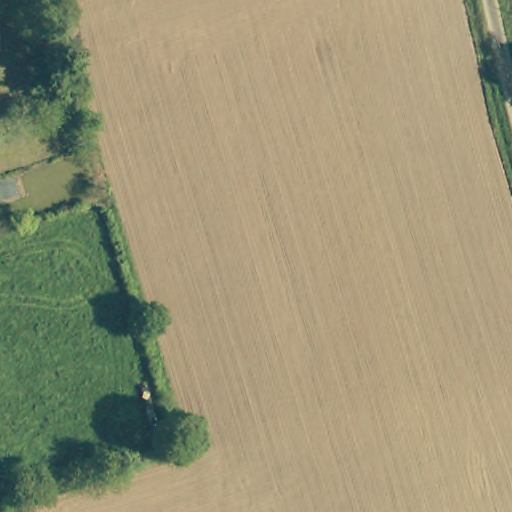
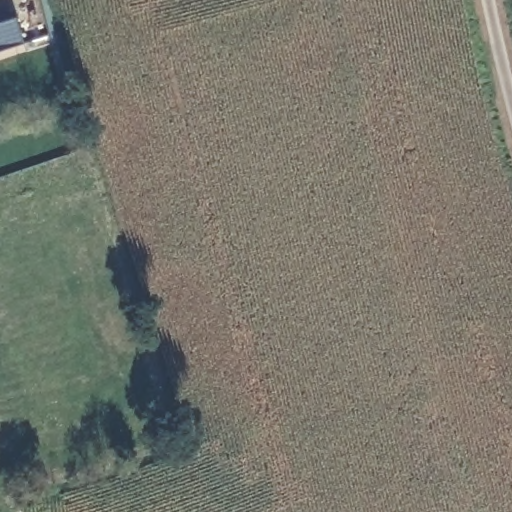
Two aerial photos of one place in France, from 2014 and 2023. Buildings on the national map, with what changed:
new [(15,15),(24,42),(0,50),(0,20),(15,15)]

